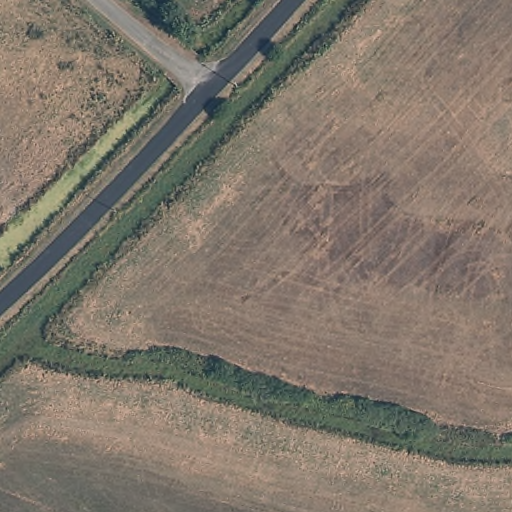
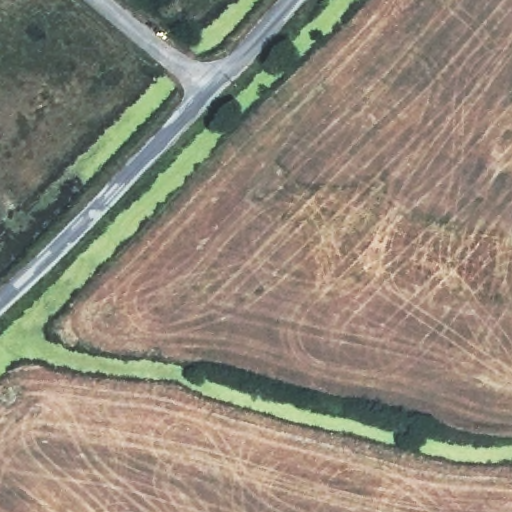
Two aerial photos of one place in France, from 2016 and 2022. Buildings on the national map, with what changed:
[]

